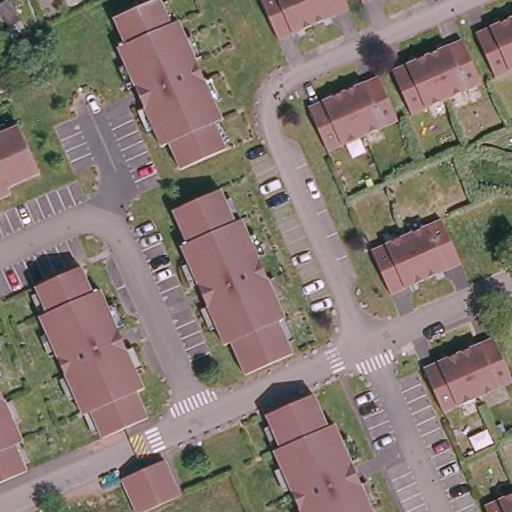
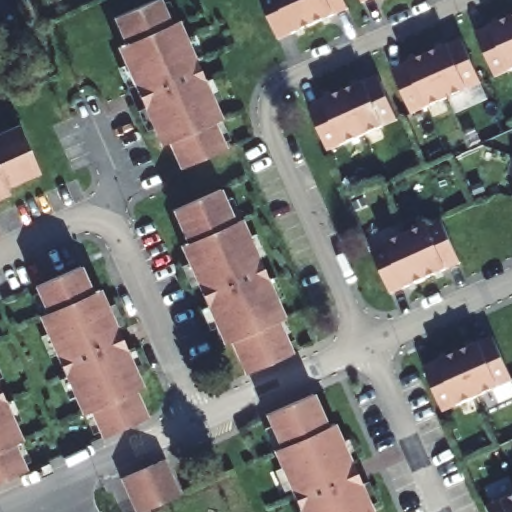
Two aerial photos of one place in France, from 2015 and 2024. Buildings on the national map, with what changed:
unchanged [(3,31),(10,26),(0,10),(0,3),(5,0),(9,0),(27,28),(8,40),(3,31)]
unchanged [(169,142),(161,145),(117,47),(125,43),(113,17),(152,0),(160,0),(170,23),(178,20),(221,118),(214,122),(225,148),(180,168),(169,142)]
unchanged [(278,39),(260,0),(344,0),(348,8),(278,39)]
unchanged [(362,2),(361,0),(368,0),(362,2)]
unchanged [(475,32),(512,16),(512,69),(495,76),(475,32)]
unchanged [(411,113),(391,69),(461,38),(481,82),(411,113)]
unchanged [(327,150),(308,106),(377,75),(397,119),(327,150)]
unchanged [(17,125),(39,172),(6,187),(9,193),(0,197),(0,133),(17,125)]
unchanged [(230,346),(223,349),(222,346),(180,250),(186,248),(171,215),(220,193),(234,226),(240,223),(278,308),(284,322),(277,325),(292,357),(245,379),(230,346)]
unchanged [(390,293),(370,250),(440,219),(460,262),(390,293)]
unchanged [(90,416),(83,419),(40,321),(46,318),(35,291),(80,271),(92,297),(100,294),(143,393),(135,396),(147,422),(105,440),(101,442),(90,416)]
unchanged [(442,411),(423,368),(493,337),(512,380),(442,411)]
unchanged [(280,447),(265,414),(313,393),(327,426),(334,423),(373,512),(301,512),(273,450),(280,447)]
unchanged [(22,445),(15,449),(26,475),(0,487),(0,396),(22,445)]
unchanged [(128,479),(155,467),(170,503),(150,512),(142,512),(135,496),(128,479)]
unchanged [(512,493),(512,512),(487,512),(484,505),(512,493)]

